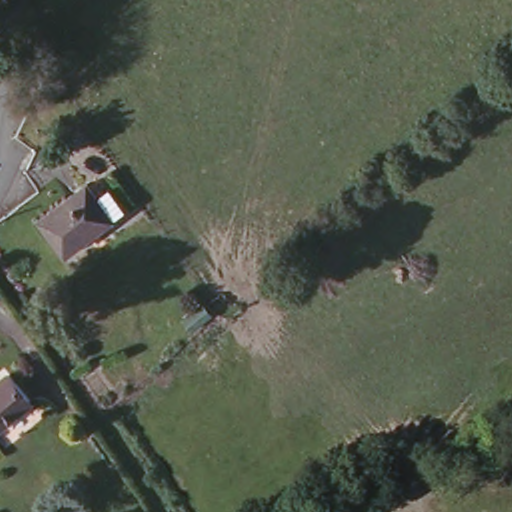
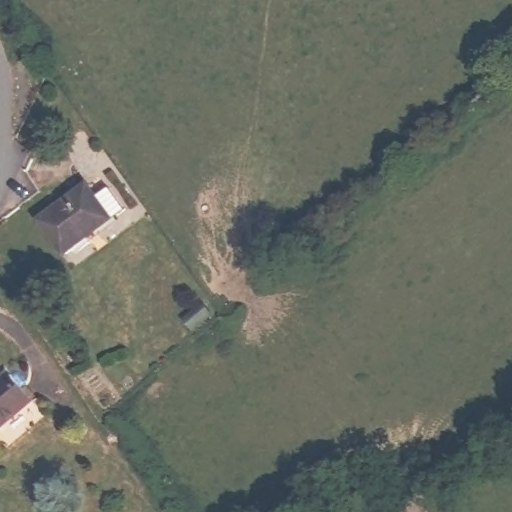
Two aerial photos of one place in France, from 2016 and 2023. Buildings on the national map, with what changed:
unchanged [(101,204),(115,195),(129,216),(67,257),(43,221),(91,189),(101,204)]
unchanged [(0,430),(0,381),(13,370),(36,399),(0,430)]

